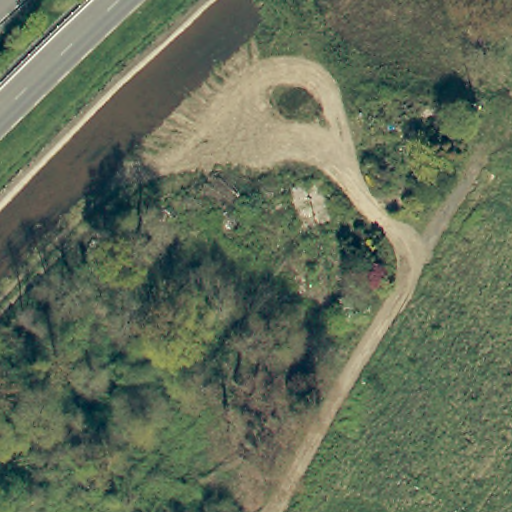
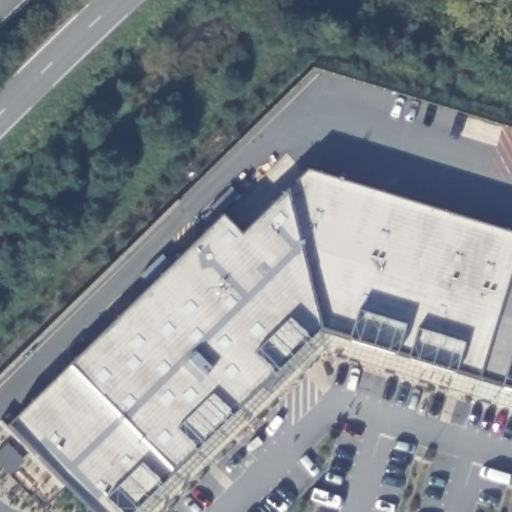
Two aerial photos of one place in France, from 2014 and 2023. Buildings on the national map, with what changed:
new [(316,330),(132,512),(88,512),(5,426),(221,217),(240,236),(282,194),(307,170),(512,235),(512,265),(476,379),(316,330)]

